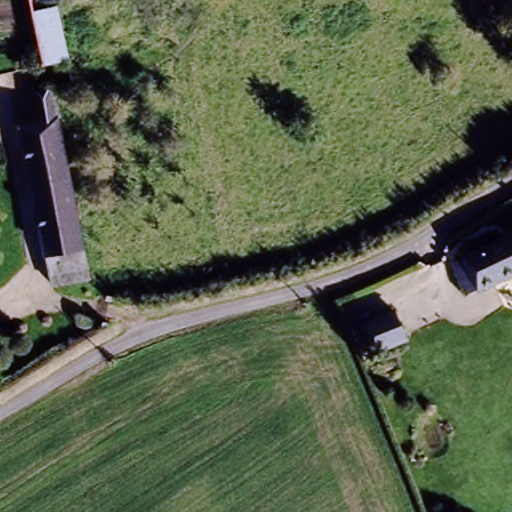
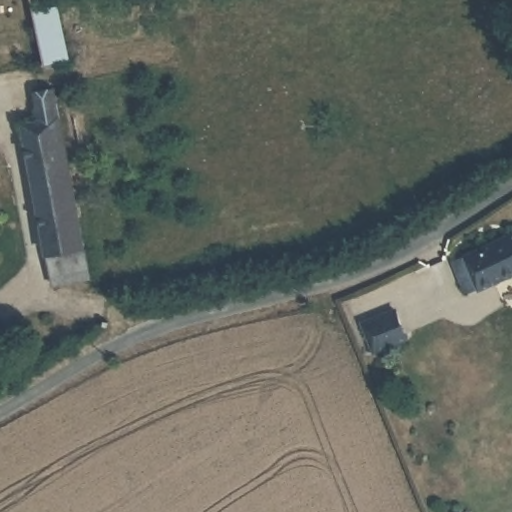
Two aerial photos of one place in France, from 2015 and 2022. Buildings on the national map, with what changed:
unchanged [(48,68),(36,13),(61,7),(74,62),(48,68)]
unchanged [(84,276),(52,283),(16,126),(36,122),(30,102),(48,99),(84,276)]
unchanged [(470,298),(456,275),(512,242),(512,275),(470,298)]

